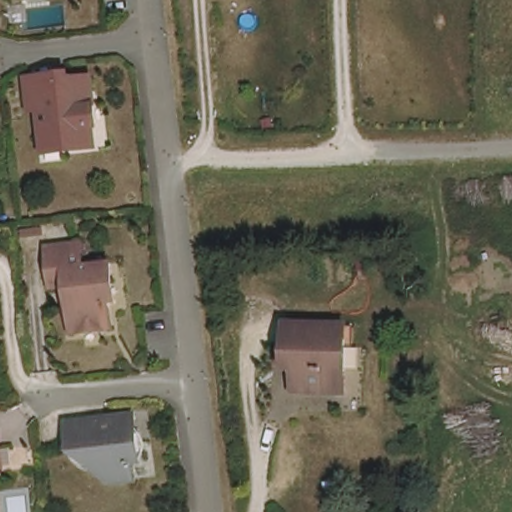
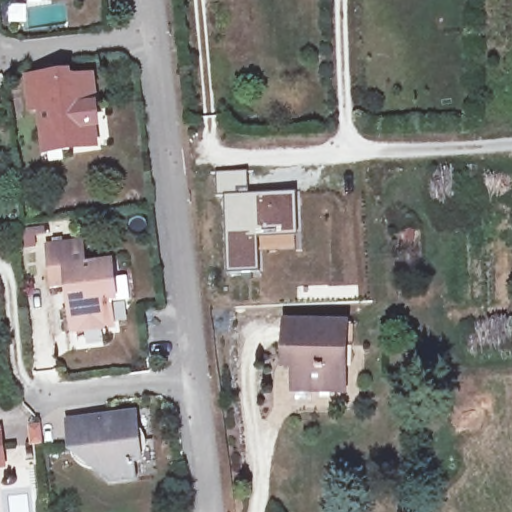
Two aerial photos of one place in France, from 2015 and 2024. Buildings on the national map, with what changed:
unchanged [(49,142),(45,111),(37,112),(33,81),(66,77),(67,84),(97,80),(101,110),(103,128),(98,129),(100,150),(68,153),(51,155),(49,142)]
new [(299,250),(261,253),(261,272),(228,274),(223,195),(216,195),(214,172),(248,170),(249,192),(297,190),(299,250)]
unchanged [(69,289),(54,290),(49,249),(83,245),(86,268),(114,265),(116,283),(110,284),(116,331),(75,335),(72,308),(70,294),(69,289)]
unchanged [(338,394),(294,393),(294,347),(284,347),(284,324),(347,325),(346,371),(347,393),(338,394)]
unchanged [(145,464),(136,465),(137,467),(139,481),(114,485),(75,455),(71,425),(139,417),(145,464)]
new [(40,443),(29,445),(27,426),(38,425),(40,443)]
unchanged [(3,433),(5,452),(7,470),(0,470),(0,434),(3,433)]

